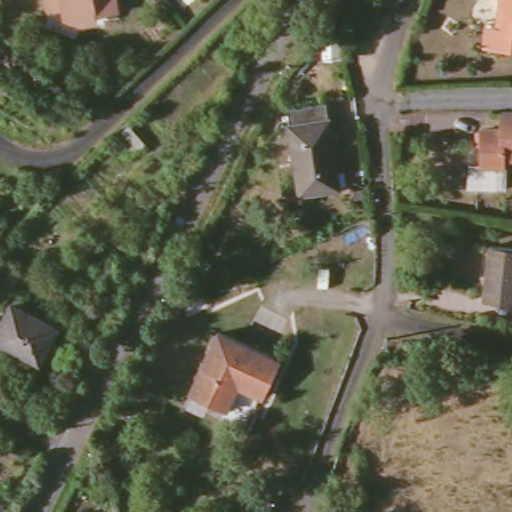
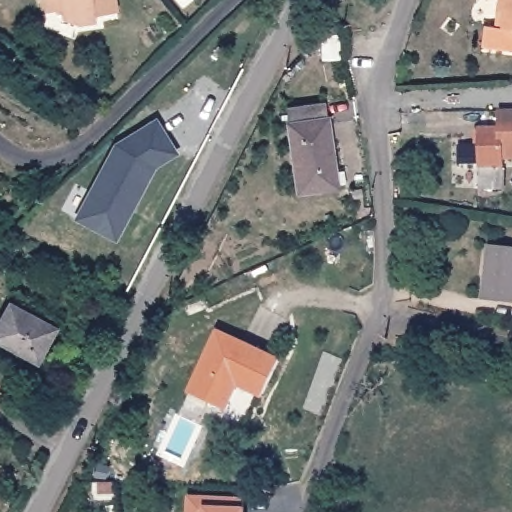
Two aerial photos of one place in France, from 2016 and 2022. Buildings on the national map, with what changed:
unchanged [(122,14),(102,17),(102,22),(82,24),(67,16),(67,8),(48,11),(47,0),(119,0),(122,14)]
unchanged [(485,48),(479,47),(481,25),(487,26),(492,27),(493,9),(494,0),(512,0),(512,50),(485,48)]
unchanged [(322,33),(340,34),(340,59),(322,59),(322,33)]
unchanged [(298,190),(287,106),(325,100),(336,186),(298,190)]
unchanged [(475,188),(474,166),(485,166),(485,130),(507,130),(507,111),(512,111),(512,157),(507,157),(507,167),(508,188),(502,188),(475,188)]
new [(117,143),(157,118),(178,150),(156,164),(133,205),(130,203),(112,235),(77,216),(117,143)]
unchanged [(481,297),(486,244),(512,246),(512,284),(510,300),(481,297)]
unchanged [(0,323),(11,304),(55,327),(37,359),(0,339),(0,323)]
unchanged [(242,383),(232,407),(197,391),(224,332),(285,359),(268,395),(242,383)]
unchanged [(97,475),(100,465),(108,467),(106,477),(97,475)]
unchanged [(97,496),(95,481),(111,481),(113,496),(97,496)]
new [(188,512),(188,496),(245,498),(247,509),(246,512),(188,512)]

